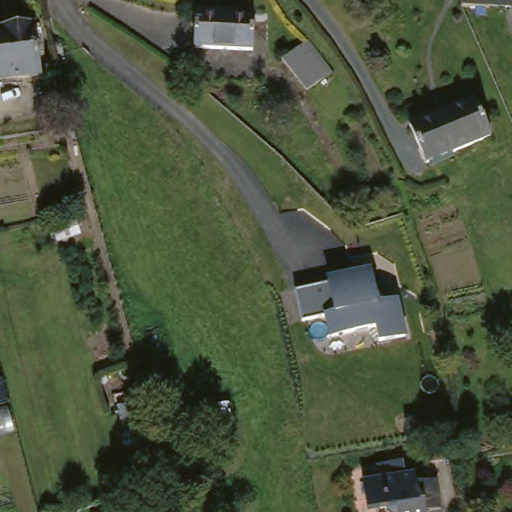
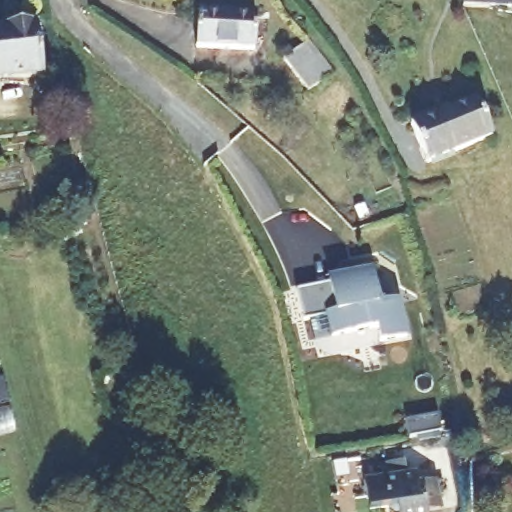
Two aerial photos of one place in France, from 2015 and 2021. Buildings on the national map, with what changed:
unchanged [(512,0),(512,2),(490,0),(512,0)]
unchanged [(252,51),(196,50),(196,13),(254,14),(252,51)]
unchanged [(0,88),(0,30),(34,26),(43,81),(0,88)]
unchanged [(336,79),(314,96),(287,63),(312,48),(336,79)]
unchanged [(492,141),(430,167),(414,129),(438,118),(439,120),(476,103),(492,141)]
unchanged [(330,280),(328,273),(374,264),(382,300),(405,299),(411,331),(381,337),(378,327),(332,336),(325,311),(305,315),(297,287),(330,280)]
unchanged [(444,507),(426,511),(427,512),(368,512),(363,479),(387,480),(383,465),(410,459),(411,479),(422,481),(438,477),(444,507)]

